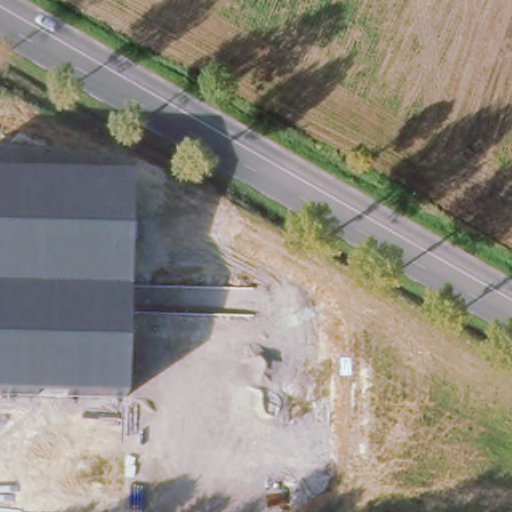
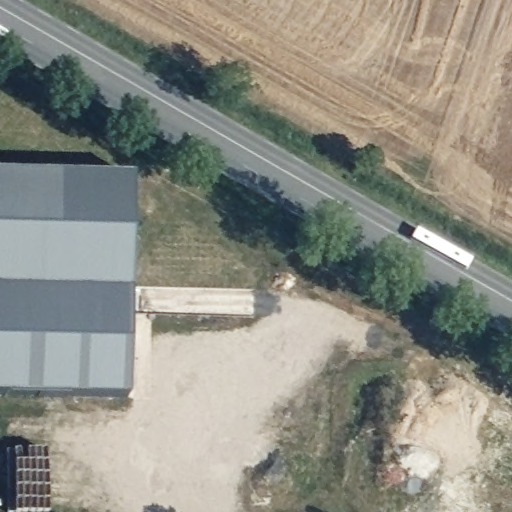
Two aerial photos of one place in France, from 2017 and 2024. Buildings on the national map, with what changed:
unchanged [(126,400),(0,399),(0,178),(130,180),(126,400)]

